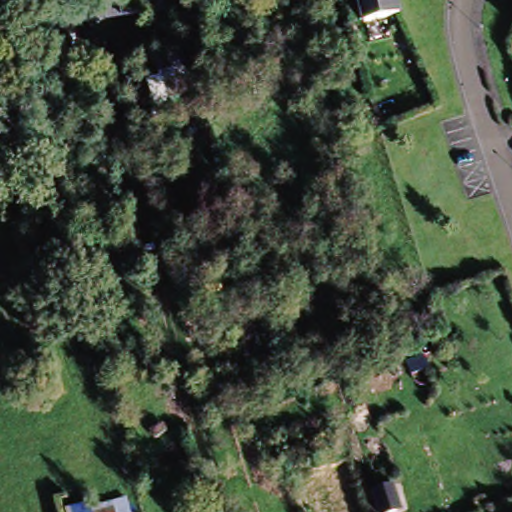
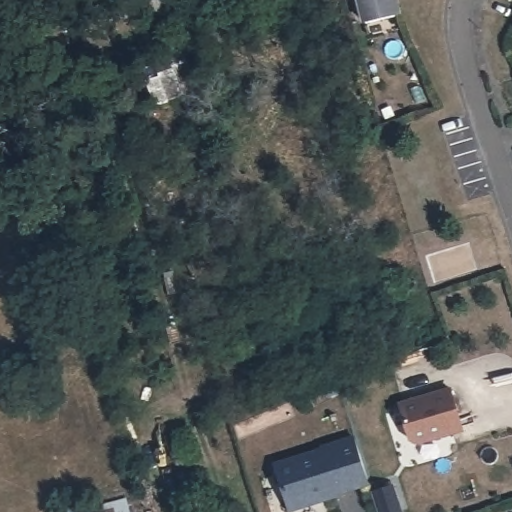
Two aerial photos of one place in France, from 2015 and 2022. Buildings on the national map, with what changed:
unchanged [(45,32),(66,129),(30,131),(5,1),(13,0),(144,0),(148,20),(45,32)]
unchanged [(361,24),(355,0),(392,0),(396,14),(361,24)]
unchanged [(511,1),(511,0),(512,0),(512,2),(511,1)]
unchanged [(510,25),(512,21),(512,26),(510,25)]
new [(452,385),(466,430),(416,445),(411,442),(399,401),(452,385)]
new [(323,453),(321,448),(354,437),(368,478),(336,489),(337,493),(289,508),(276,467),(323,453)]
new [(401,510),(395,512),(380,512),(374,492),(393,486),(401,510)]
unchanged [(131,512),(66,512),(65,510),(125,495),(131,512)]

